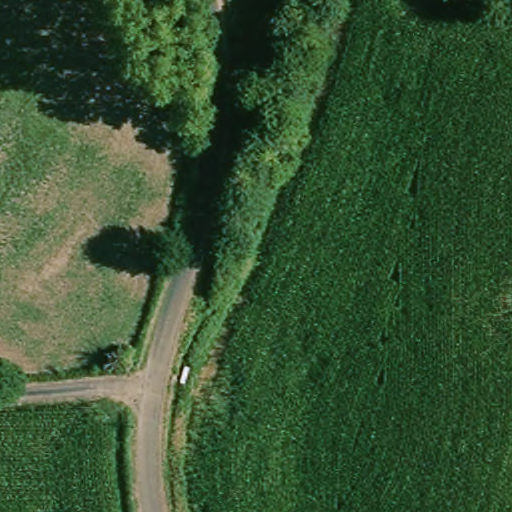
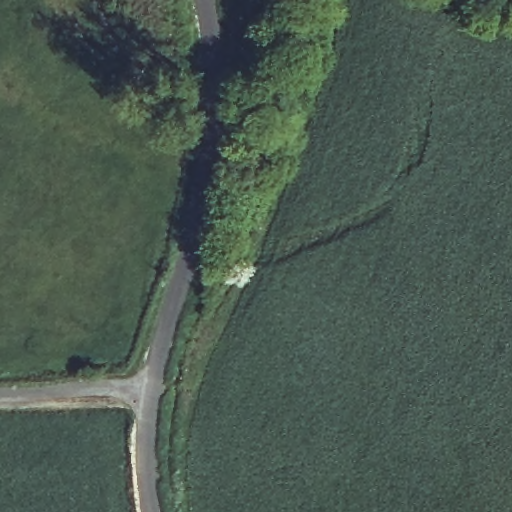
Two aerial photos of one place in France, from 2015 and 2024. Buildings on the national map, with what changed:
[]

